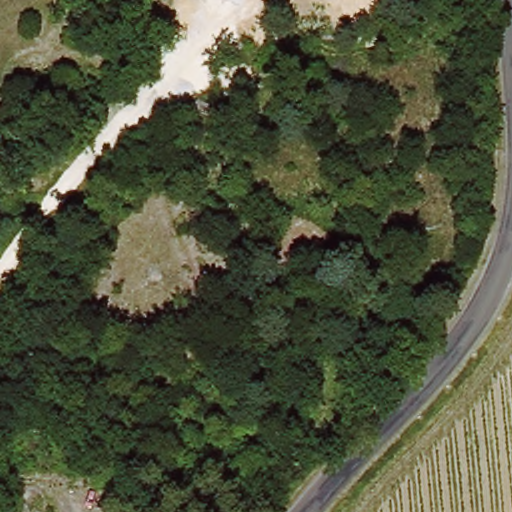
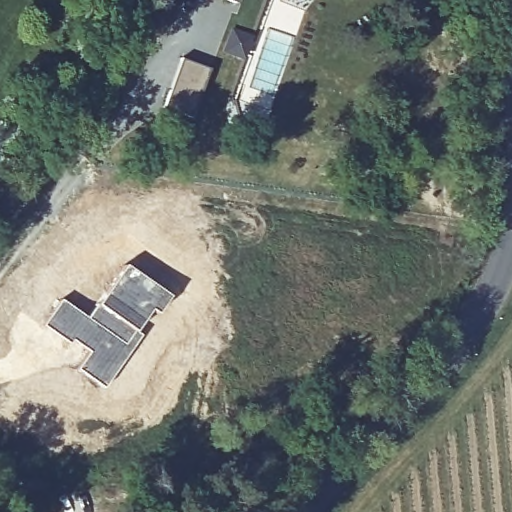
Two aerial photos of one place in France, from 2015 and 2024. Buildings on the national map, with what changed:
new [(180,57),(208,68),(190,117),(162,106),(180,57)]
new [(61,298),(86,315),(123,263),(170,295),(155,315),(149,311),(135,331),(140,335),(101,389),(74,369),(86,352),(71,341),(69,344),(42,325),(61,298)]

